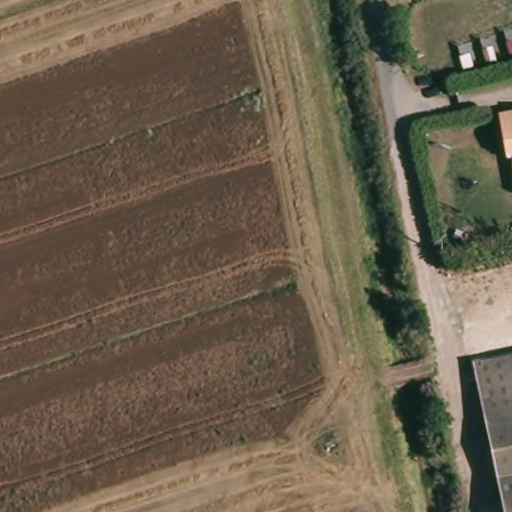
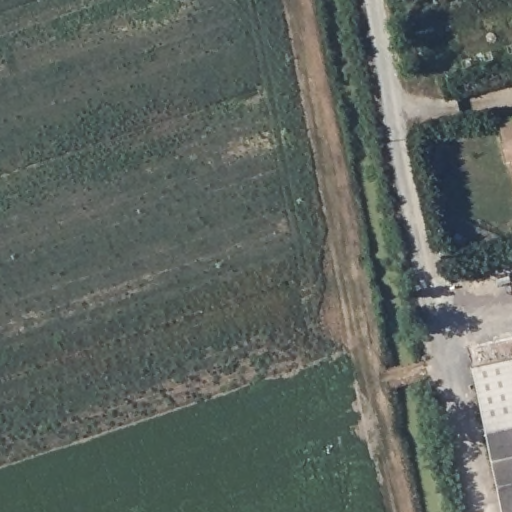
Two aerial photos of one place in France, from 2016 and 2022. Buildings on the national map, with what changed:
unchanged [(500,120),(512,118),(512,162),(505,163),(500,120)]
unchanged [(479,362),(487,360),(512,355),(512,421),(491,425),(479,362)]
unchanged [(491,425),(512,421),(512,476),(503,478),(491,425)]
unchanged [(512,476),(512,512),(509,512),(503,478),(512,476)]

